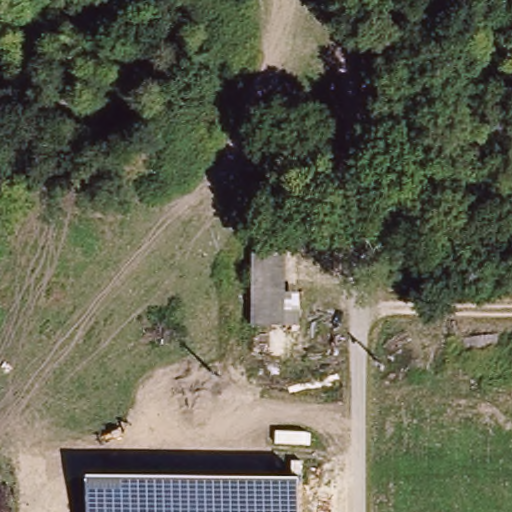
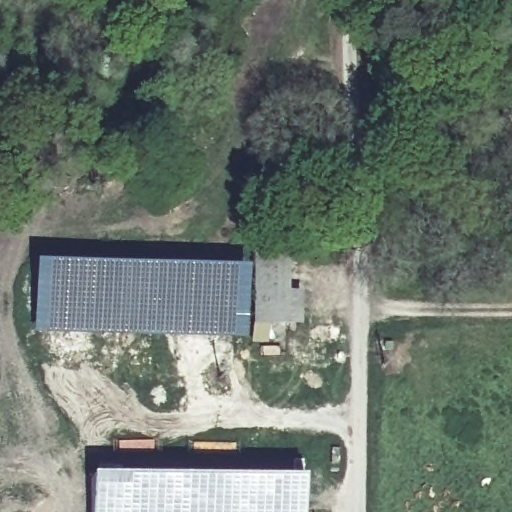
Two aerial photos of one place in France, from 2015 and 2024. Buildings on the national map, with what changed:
unchanged [(305,323),(290,322),(257,319),(260,238),(297,240),(294,288),(307,289),(305,323)]
new [(247,270),(244,340),(33,334),(34,264),(247,270)]
unchanged [(304,480),(303,512),(90,512),(91,479),(304,480)]

